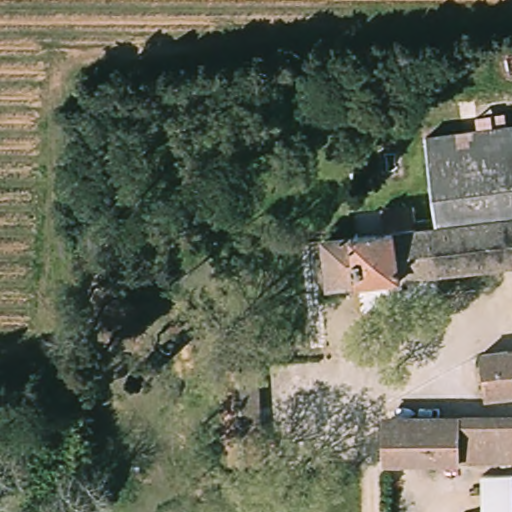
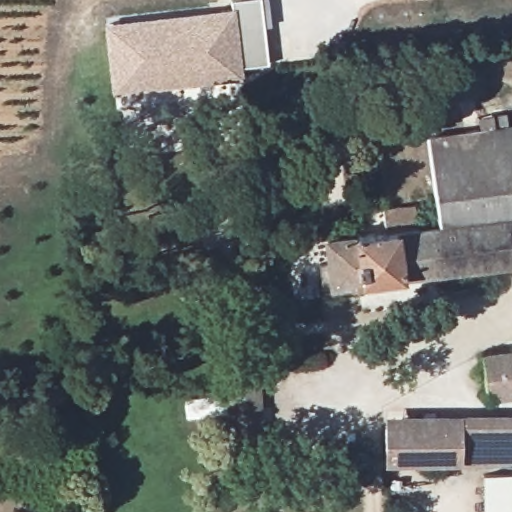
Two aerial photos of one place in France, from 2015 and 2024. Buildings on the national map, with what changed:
new [(226,0),(255,0),(263,64),(233,66),(234,75),(109,89),(102,26),(227,11),(226,0)]
unchanged [(444,224),(430,133),(512,118),(512,216),(444,224)]
unchanged [(364,288),(365,298),(326,302),(321,253),(329,252),(328,237),(444,224),(512,216),(512,271),(453,276),(364,288)]
unchanged [(487,358),(512,355),(512,400),(492,403),(487,358)]
unchanged [(492,403),(464,406),(461,361),(487,358),(492,403)]
unchanged [(255,359),(257,431),(266,432),(267,452),(258,452),(256,455),(233,455),(223,455),(221,359),(255,359)]
unchanged [(485,466),(432,466),(432,427),(512,426),(512,465),(485,466)]
unchanged [(432,466),(393,467),(393,428),(432,427),(432,466)]
demolished [(347,451),(293,452),(293,430),(368,430),(370,450),(347,451)]
unchanged [(485,466),(512,465),(512,512),(486,512),(485,466)]

